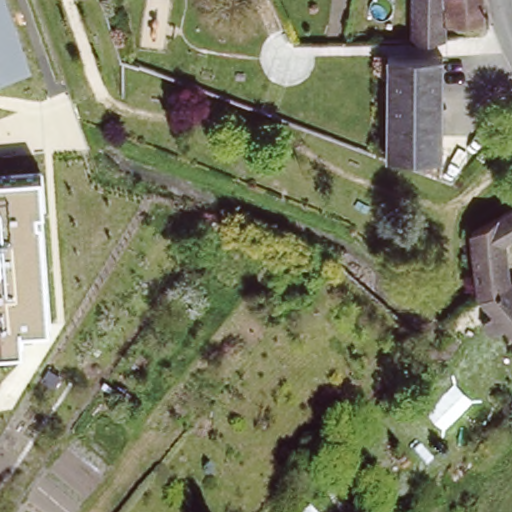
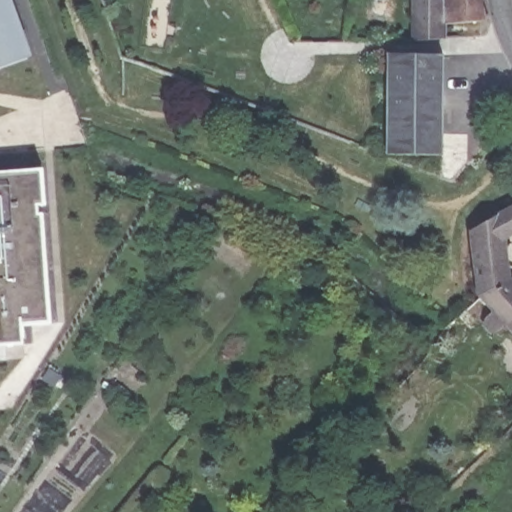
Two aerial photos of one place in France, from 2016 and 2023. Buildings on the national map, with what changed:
unchanged [(29,57),(0,69),(0,0),(7,0),(29,57)]
unchanged [(415,44),(415,30),(416,0),(445,0),(446,19),(447,27),(447,41),(423,43),(415,44)]
unchanged [(486,25),(455,27),(454,27),(453,27),(451,0),(479,0),(486,25)]
unchanged [(445,54),(444,155),(389,154),(390,54),(445,54)]
unchanged [(42,169),(44,205),(36,205),(36,215),(42,214),(50,323),(21,325),(22,343),(0,345),(0,171),(42,169)]
unchanged [(507,283),(512,281),(512,337),(502,326),(491,335),(481,326),(480,325),(474,320),(483,312),(486,310),(478,301),(476,300),(475,292),(474,286),(470,265),(464,234),(469,231),(476,227),(477,226),(512,207),(512,235),(499,242),(507,283)]
unchanged [(442,365),(427,352),(473,304),(476,300),(478,301),(486,310),(483,312),(474,320),(480,325),(442,365)]

